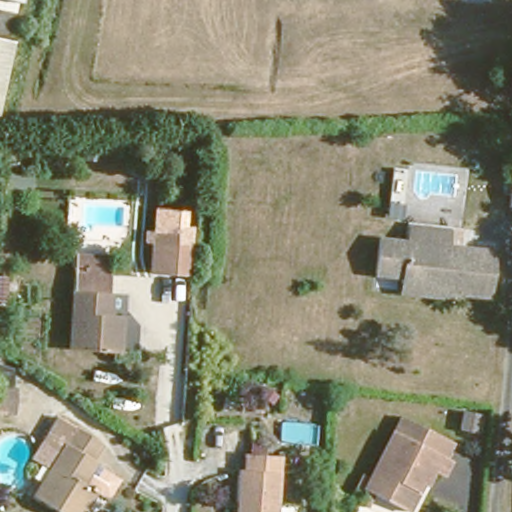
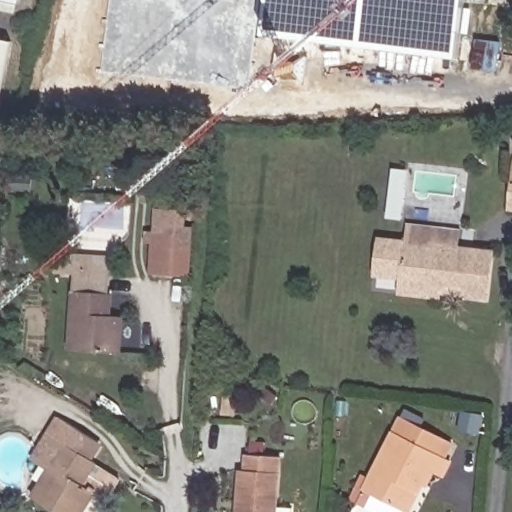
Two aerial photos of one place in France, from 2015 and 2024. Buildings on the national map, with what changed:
new [(264,34),(269,0),(465,0),(459,57),(264,34)]
unchanged [(0,90),(0,33),(11,35),(0,90)]
unchanged [(508,211),(512,178),(512,212),(508,211)]
unchanged [(145,257),(148,231),(166,233),(165,244),(193,247),(191,276),(154,273),(144,273),(145,257)]
unchanged [(496,242),(492,293),(444,290),(443,298),(396,295),(397,276),(373,274),(376,232),(496,242)]
unchanged [(125,317),(123,350),(72,346),(80,252),(110,255),(105,315),(125,317)]
unchanged [(0,385),(16,387),(15,409),(0,408),(0,385)]
unchanged [(88,487),(73,512),(61,512),(29,493),(58,448),(39,437),(55,411),(93,432),(83,449),(93,455),(78,481),(88,487)]
unchanged [(444,482),(429,476),(412,511),(379,497),(373,509),(351,500),(363,475),(370,480),(400,415),(454,442),(444,482)]
unchanged [(231,463),(237,464),(238,447),(274,450),(270,501),(286,503),(285,512),(227,512),(231,463)]

